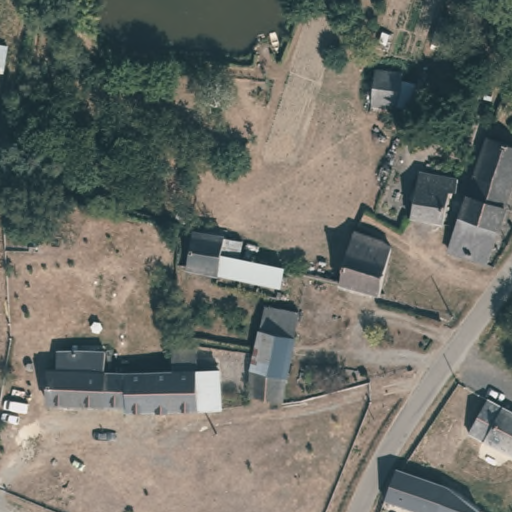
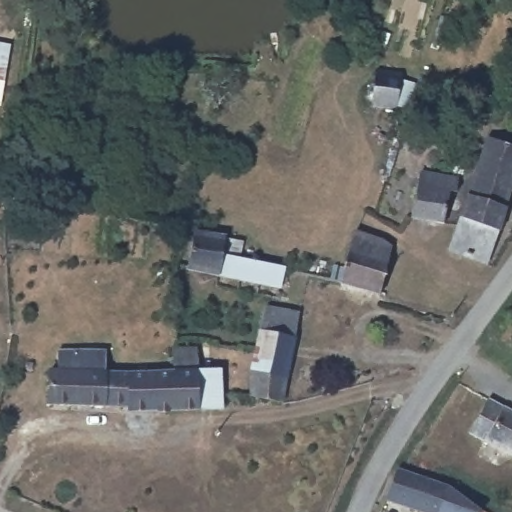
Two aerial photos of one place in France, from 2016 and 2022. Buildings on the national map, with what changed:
unchanged [(400,105),(375,104),(378,68),(403,70),(400,105)]
unchanged [(486,263),(449,252),(487,138),(512,145),(512,189),(486,263)]
unchanged [(458,180),(456,193),(449,192),(443,224),(411,219),(419,173),(458,180)]
unchanged [(247,242),(244,259),(286,269),(284,287),(190,268),(196,232),(226,238),(247,242)]
unchanged [(379,294),(340,283),(354,232),(391,246),(379,294)]
unchanged [(250,371),(254,350),(258,331),(264,307),(298,312),(293,337),(283,402),(251,397),(250,371)]
unchanged [(111,351),(110,371),(178,371),(177,348),(202,348),(202,371),(224,370),(225,409),(131,413),(131,407),(53,405),(53,371),(54,358),(82,358),(82,350),(111,351)]
unchanged [(512,414),(512,455),(467,432),(484,399),(512,414)]
unchanged [(408,470),(454,485),(446,512),(423,512),(392,502),(404,468),(408,470)]

